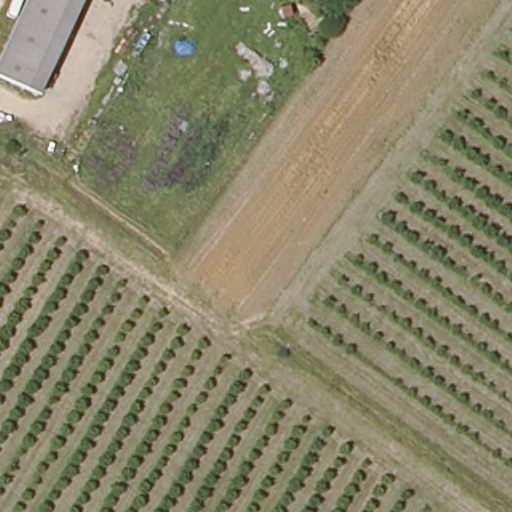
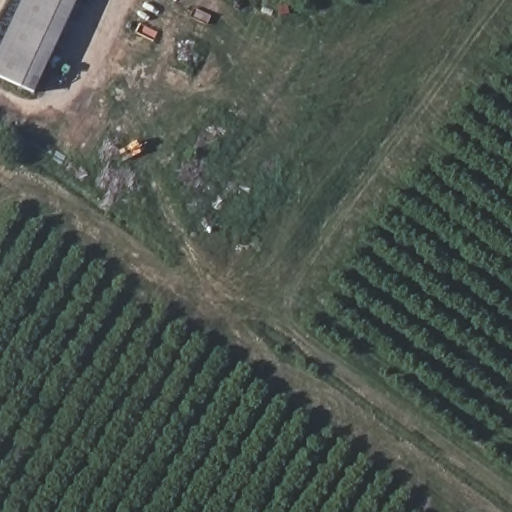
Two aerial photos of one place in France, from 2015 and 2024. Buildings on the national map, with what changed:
unchanged [(9,31),(28,0),(66,0),(13,98),(0,90),(0,53),(9,31)]

